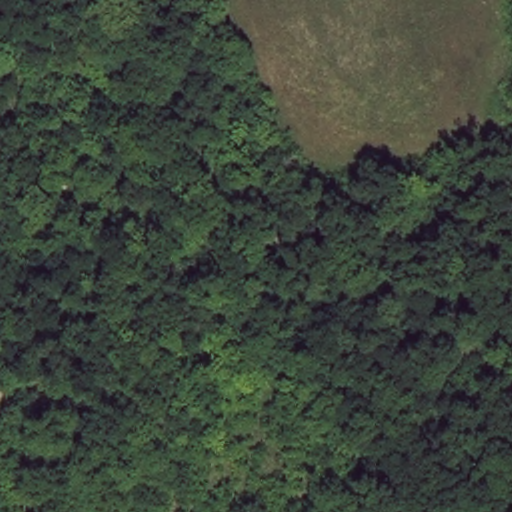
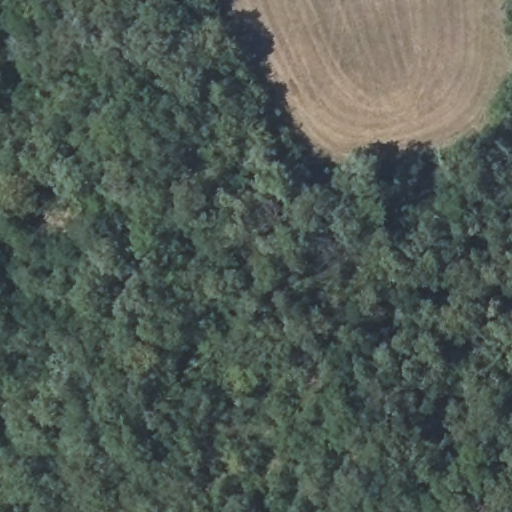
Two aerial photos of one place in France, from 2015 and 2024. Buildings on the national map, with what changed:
[]

